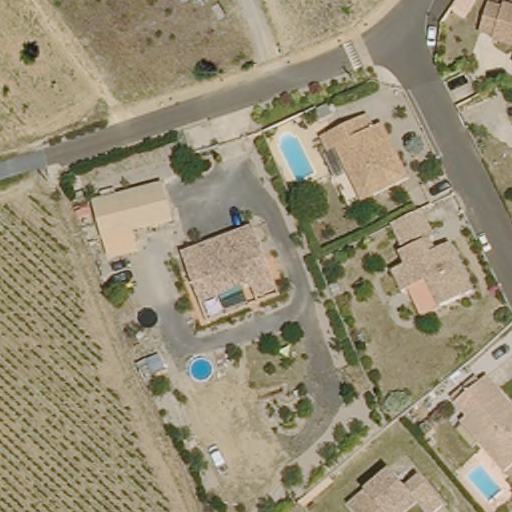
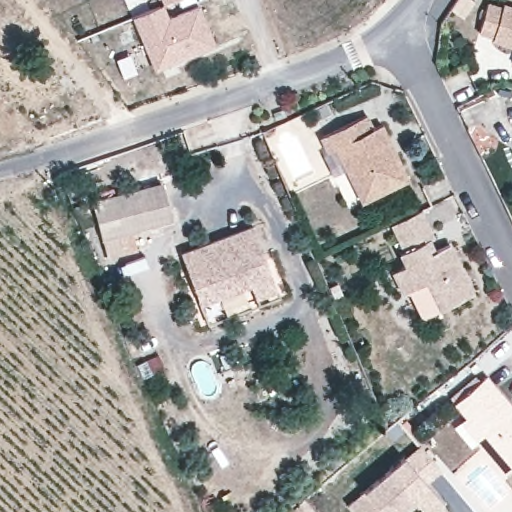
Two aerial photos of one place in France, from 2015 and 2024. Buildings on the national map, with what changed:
new [(161,0),(176,0),(163,5),(161,0)]
unchanged [(485,34),(470,30),(478,2),(493,6),(494,3),(512,9),(512,68),(504,65),(509,46),(503,45),(484,39),(485,34)]
new [(164,5),(169,18),(198,4),(215,45),(154,71),(131,16),(164,5)]
unchanged [(325,113),(332,123),(321,129),(315,119),(325,113)]
unchanged [(312,143),(359,120),(365,132),(375,128),(380,139),(387,154),(401,183),(354,206),(327,153),(319,156),(312,143)]
unchanged [(162,185),(172,221),(103,239),(93,203),(162,185)]
unchanged [(408,295),(398,299),(387,277),(397,272),(401,271),(395,259),(399,257),(386,229),(416,214),(429,243),(424,245),(430,257),(444,250),(467,299),(434,315),(421,321),(408,295)]
unchanged [(205,300),(186,254),(257,224),(269,254),(281,284),(260,293),(255,279),(246,283),(225,292),(205,300)]
unchanged [(478,377),(500,403),(512,418),(512,460),(496,474),(469,444),(452,424),(459,418),(447,404),(478,377)]
unchanged [(345,512),(386,477),(402,494),(416,483),(440,512),(439,512),(412,512),(411,510),(408,512),(345,512)]
unchanged [(300,506),(305,512),(292,512),(300,506)]

